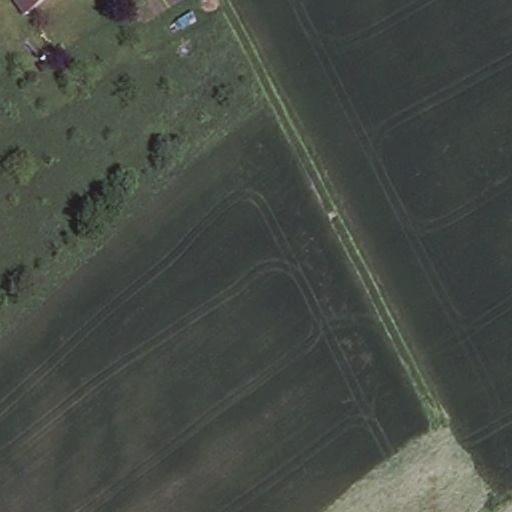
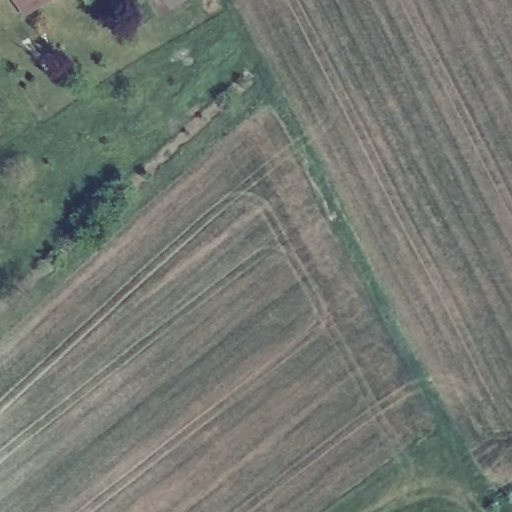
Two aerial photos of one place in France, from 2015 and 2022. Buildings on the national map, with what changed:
unchanged [(13,0),(38,0),(22,12),(13,0)]

